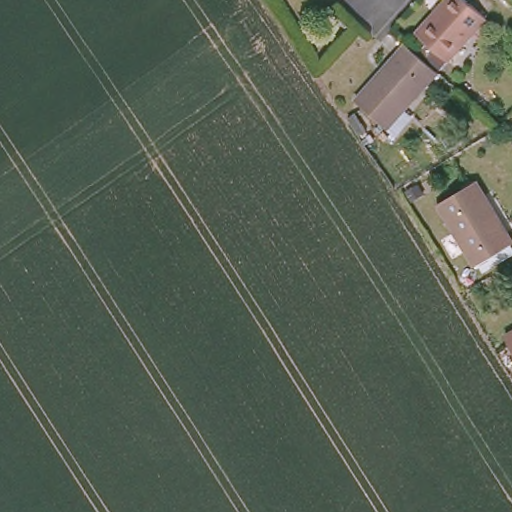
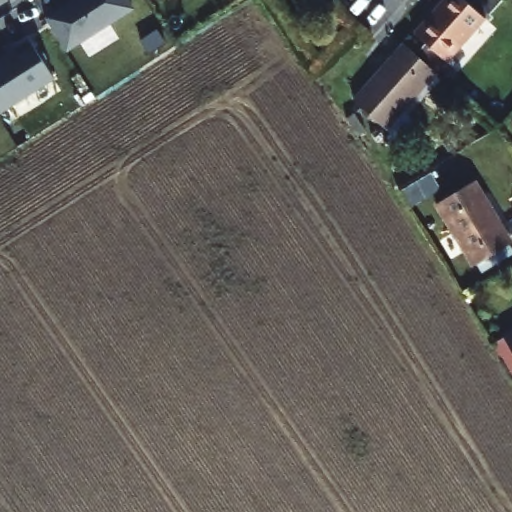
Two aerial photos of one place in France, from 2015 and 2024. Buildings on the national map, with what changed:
new [(72,0),(129,0),(134,7),(67,49),(46,16),(72,0)]
unchanged [(427,36),(415,25),(437,0),(471,0),(485,12),(447,54),(437,64),(417,45),(427,36)]
new [(15,54),(19,52),(14,44),(28,35),(55,77),(0,111),(0,62),(10,55),(15,54)]
unchanged [(434,69),(382,126),(352,99),(402,41),(434,69)]
unchanged [(512,235),(512,247),(476,267),(438,201),(478,177),(512,235)]
unchanged [(503,340),(512,335),(512,355),(503,340)]

